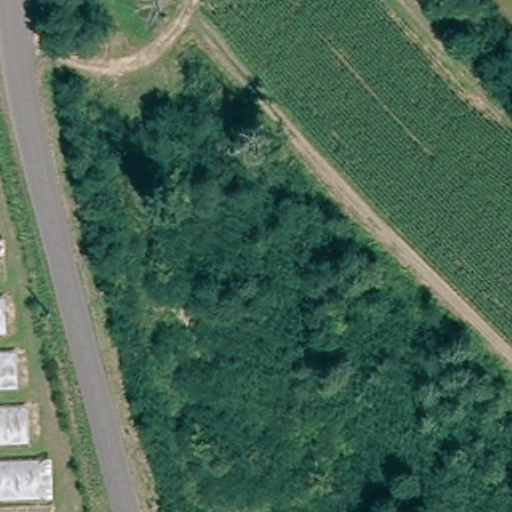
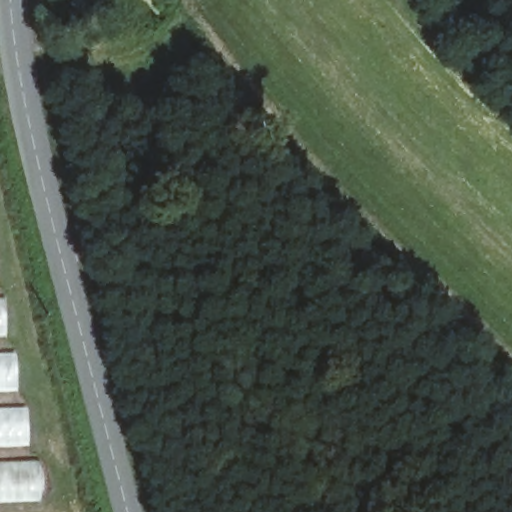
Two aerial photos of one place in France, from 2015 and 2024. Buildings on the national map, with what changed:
unchanged [(9,348),(17,349),(20,402),(27,402),(31,460),(54,460),(54,500),(0,502),(0,243),(2,243),(9,348)]

